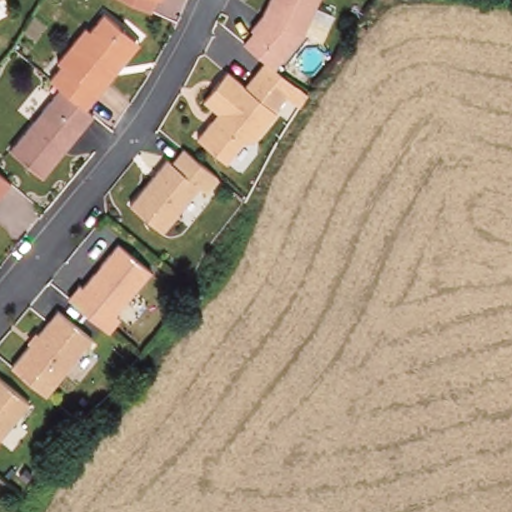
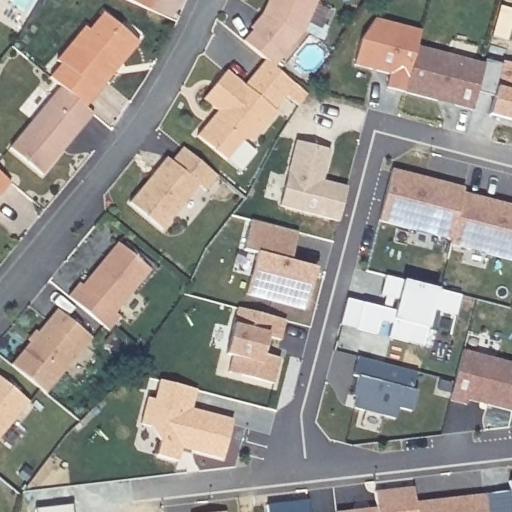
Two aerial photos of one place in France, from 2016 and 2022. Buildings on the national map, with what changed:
unchanged [(302,40),(284,62),(250,35),(261,21),(268,0),(315,0),(302,40)]
unchanged [(47,81),(58,67),(54,64),(82,29),(86,33),(100,15),(116,28),(136,45),(131,50),(83,110),(58,90),(47,81)]
new [(350,43),(363,22),(409,34),(405,50),(393,96),(375,91),(379,78),(343,69),(350,43)]
new [(405,50),(473,67),(466,94),(461,113),(393,96),(405,50)]
new [(473,67),(474,62),(491,66),(492,63),(512,68),(512,123),(511,125),(478,117),(483,98),(466,94),(473,67)]
unchanged [(274,74),(280,79),(295,91),(275,117),(276,118),(263,134),(254,138),(237,159),(207,136),(220,120),(205,108),(229,79),(247,94),(267,69),(274,74)]
unchanged [(83,110),(91,117),(42,177),(9,150),(58,90),(83,110)]
new [(320,153),(313,178),(312,184),(337,191),(328,224),(270,209),(286,144),(320,153)]
unchanged [(220,178),(209,193),(202,188),(166,232),(134,206),(170,160),(175,164),(185,150),(220,178)]
new [(414,180),(435,186),(453,191),(452,195),(440,242),(368,224),(381,172),(414,180)]
unchanged [(0,197),(0,176),(10,184),(0,197)]
new [(452,195),(472,200),(492,205),(512,210),(512,265),(440,247),(440,242),(452,195)]
new [(241,224),(287,235),(280,264),(306,271),(295,313),(236,297),(247,257),(233,253),(241,224)]
unchanged [(79,285),(82,287),(117,244),(150,271),(115,314),(120,318),(109,331),(79,307),(68,298),(79,285)]
new [(393,363),(374,358),(377,344),(366,341),(362,355),(342,349),(352,306),(385,314),(388,302),(371,298),(375,279),(450,298),(445,318),(422,312),(413,349),(409,366),(393,363)]
unchanged [(52,311),(87,340),(42,395),(7,366),(52,311)]
new [(228,311),(276,323),(271,344),(258,340),(254,357),(270,362),(264,387),(219,376),(223,359),(216,358),(228,311)]
new [(453,352),(512,367),(512,384),(505,413),(458,402),(457,407),(440,402),(453,352)]
new [(348,380),(343,378),(348,360),(407,375),(403,392),(408,393),(403,414),(390,410),(386,421),(345,411),(347,400),(343,399),(348,380)]
unchanged [(0,438),(0,383),(26,404),(0,438)]
new [(170,465),(148,459),(151,446),(142,431),(132,429),(139,402),(146,404),(151,384),(187,394),(183,413),(225,424),(215,462),(181,454),(173,452),(170,465)]
new [(496,498),(501,497),(500,483),(512,481),(512,512),(478,512),(476,496),(495,494),(496,498)]
new [(366,494),(405,490),(406,505),(407,512),(353,512),(368,510),(366,494)]
new [(476,496),(478,512),(407,512),(406,505),(425,502),(443,500),(476,496)]
new [(300,503),(300,512),(258,512),(257,508),(300,503)]
new [(65,512),(27,512),(65,507),(65,512)]

